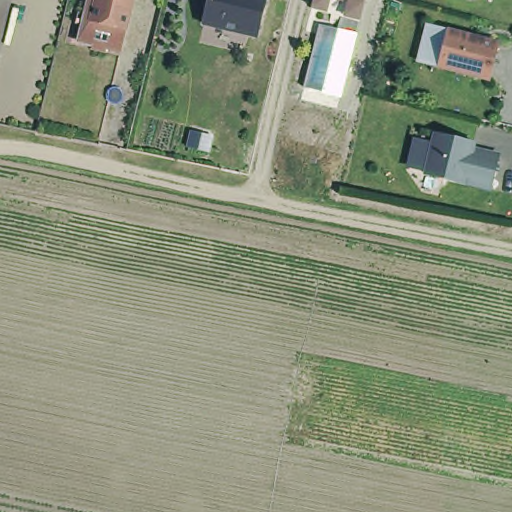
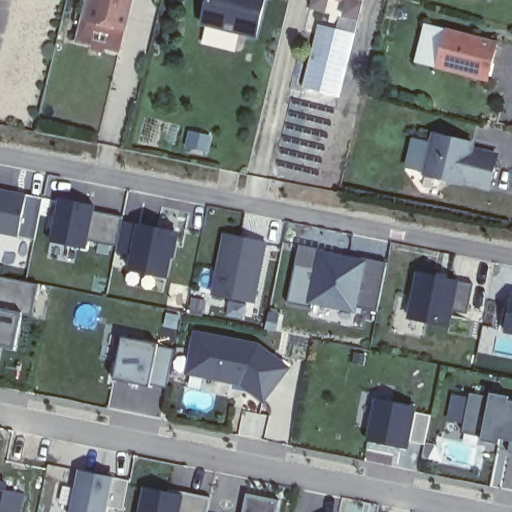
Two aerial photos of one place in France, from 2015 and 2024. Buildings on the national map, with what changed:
unchanged [(82,35),(90,0),(97,0),(93,17),(129,26),(125,46),(82,35)]
unchanged [(97,0),(135,0),(129,26),(93,17),(97,0)]
unchanged [(202,26),(207,0),(269,0),(259,39),(202,26)]
unchanged [(338,0),(361,0),(360,5),(338,0)]
new [(340,97),(302,88),(318,25),(356,34),(340,97)]
unchanged [(501,42),(491,82),(437,70),(449,30),(501,42)]
unchanged [(478,143),(477,151),(500,155),(492,189),(425,176),(435,133),(478,143)]
new [(39,199),(31,241),(0,235),(0,192),(39,199)]
new [(84,241),(82,249),(47,242),(56,200),(91,207),(90,212),(119,218),(113,247),(84,241)]
new [(168,279),(130,272),(132,256),(116,252),(124,220),(139,223),(177,230),(168,279)]
new [(211,294),(223,233),(268,241),(256,303),(211,294)]
new [(374,312),(351,307),(350,309),(310,301),(309,308),(284,303),(296,245),(320,250),(359,257),(384,262),(374,312)]
new [(469,315),(454,312),(450,328),(409,320),(418,273),(475,284),(469,315)]
new [(32,316),(22,315),(15,349),(0,346),(0,277),(39,284),(32,316)]
new [(512,300),(512,335),(505,334),(512,300)]
new [(195,330),(261,343),(294,367),(265,403),(240,386),(186,374),(195,330)]
new [(168,388),(150,386),(115,378),(123,338),(160,345),(176,348),(168,388)]
new [(510,441),(501,439),(500,445),(481,441),(482,437),(464,432),(472,392),(491,396),(491,393),(510,396),(510,400),(512,401),(512,453),(509,452),(510,441)]
new [(368,440),(376,399),(418,407),(417,413),(432,416),(427,446),(411,442),(410,448),(368,440)]
new [(124,510),(110,507),(108,512),(72,512),(81,471),(115,478),(130,481),(124,510)]
new [(22,512),(0,512),(0,482),(8,483),(7,490),(26,493),(22,512)]
new [(146,486),(184,493),(212,498),(209,512),(140,512),(146,486)]
new [(278,512),(243,512),(248,493),(281,500),(278,512)]

